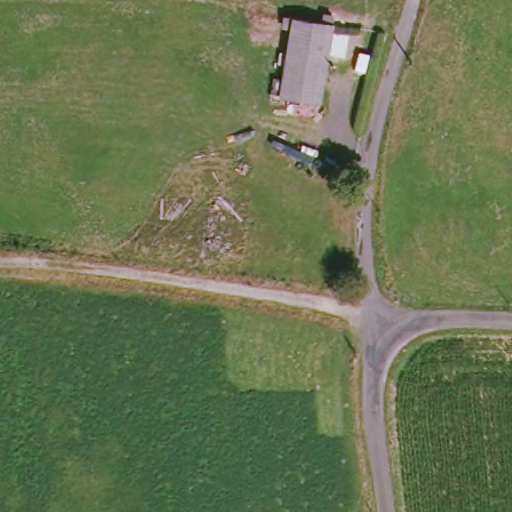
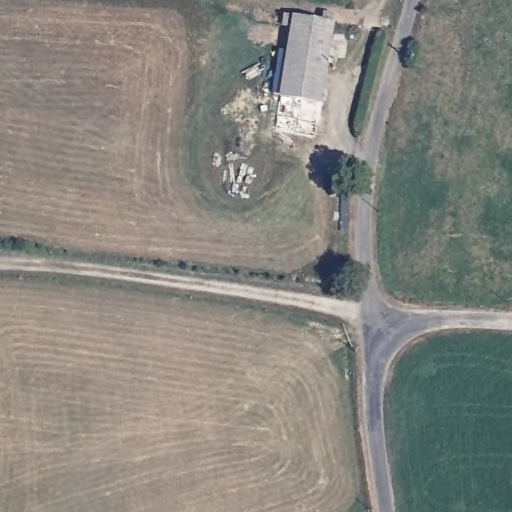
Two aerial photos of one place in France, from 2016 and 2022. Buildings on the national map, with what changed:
unchanged [(315,103),(277,99),(287,20),(327,26),(315,103)]

